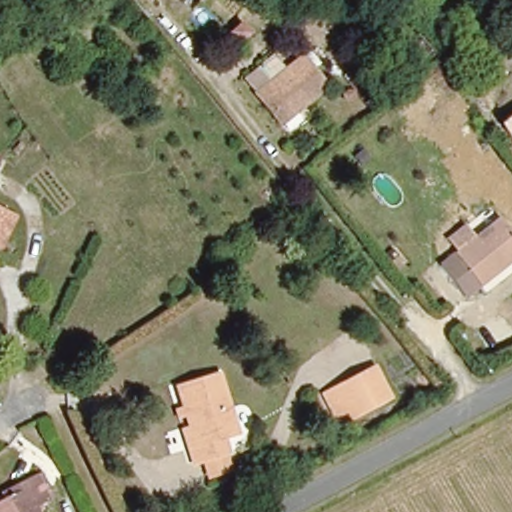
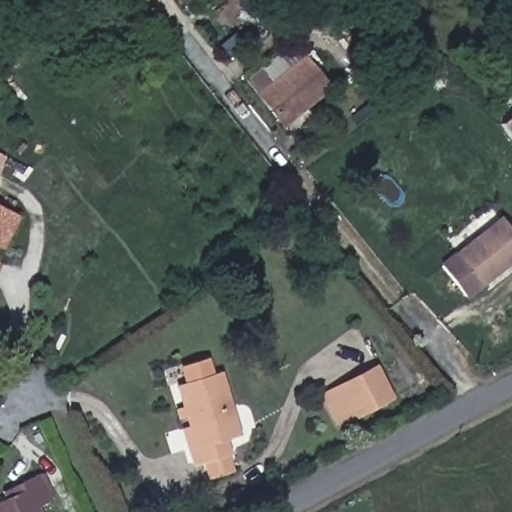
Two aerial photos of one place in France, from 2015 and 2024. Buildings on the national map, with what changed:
unchanged [(280,126),(240,77),(260,63),(268,78),(300,50),(330,89),(280,126)]
unchanged [(512,115),(512,139),(500,124),(512,115)]
unchanged [(14,215),(0,244),(0,208),(14,215)]
unchanged [(512,256),(480,284),(453,254),(496,216),(512,234),(512,256)]
unchanged [(323,393),(333,387),(372,366),(388,399),(351,419),(340,424),(323,393)]
unchanged [(206,478),(204,464),(194,466),(188,449),(194,447),(189,425),(185,413),(175,416),(173,407),(181,405),(177,385),(179,385),(218,373),(236,434),(223,438),(230,455),(222,459),(226,472),(206,478)]
unchanged [(6,496),(25,487),(20,479),(37,472),(54,501),(40,509),(41,512),(0,512),(0,499),(6,496)]

